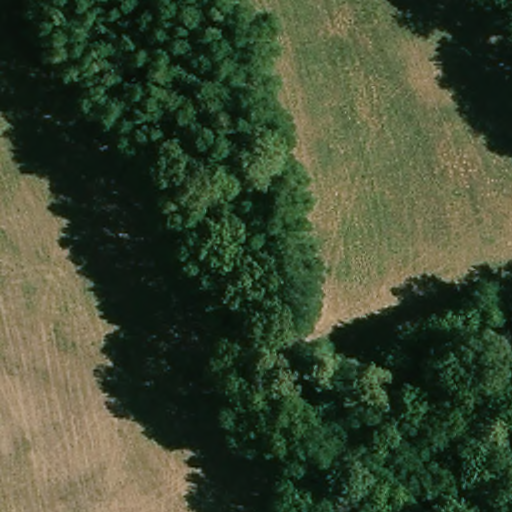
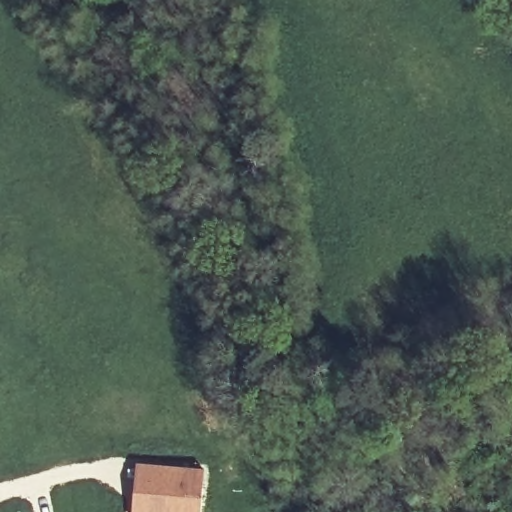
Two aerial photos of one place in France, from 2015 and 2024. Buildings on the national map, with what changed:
new [(202,512),(133,512),(137,463),(205,469),(202,512)]

